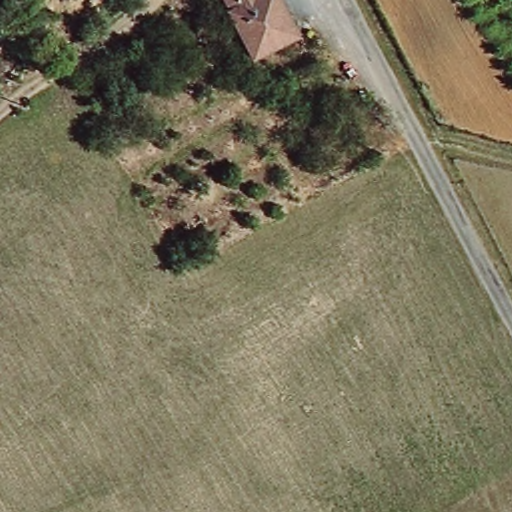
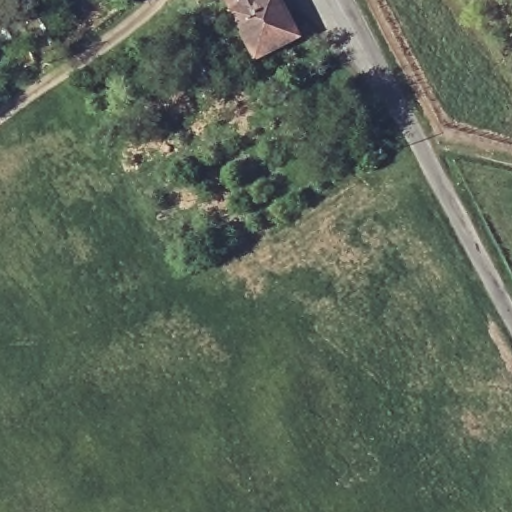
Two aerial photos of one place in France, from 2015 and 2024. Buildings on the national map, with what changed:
unchanged [(260,56),(229,0),(282,0),(301,33),(260,56)]

